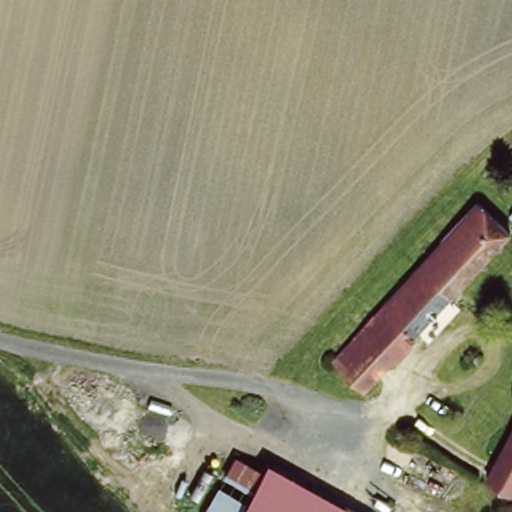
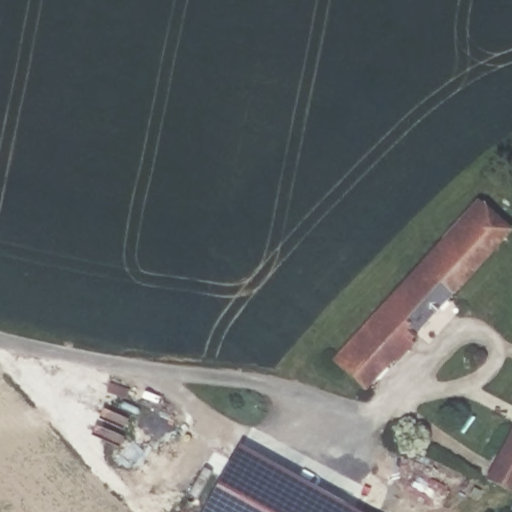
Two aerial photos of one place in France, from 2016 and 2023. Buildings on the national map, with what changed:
unchanged [(477,200),(509,227),(369,389),(335,360),(477,200)]
unchanged [(512,502),(486,489),(512,440),(512,502)]
unchanged [(258,478),(271,454),(377,512),(219,512),(242,470),(258,478)]

